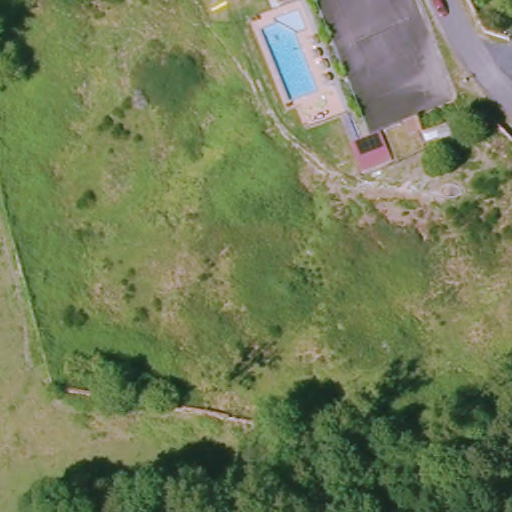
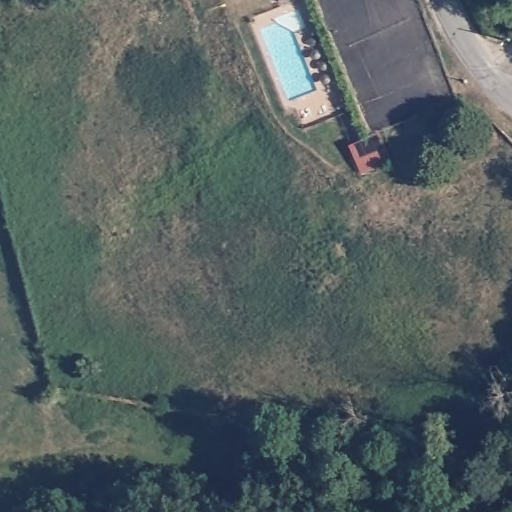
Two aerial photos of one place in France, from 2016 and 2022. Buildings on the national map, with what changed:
unchanged [(355,157),(352,151),(360,148),(359,146),(378,142),(380,146),(381,152),(383,151),(388,161),(362,172),(355,157)]

